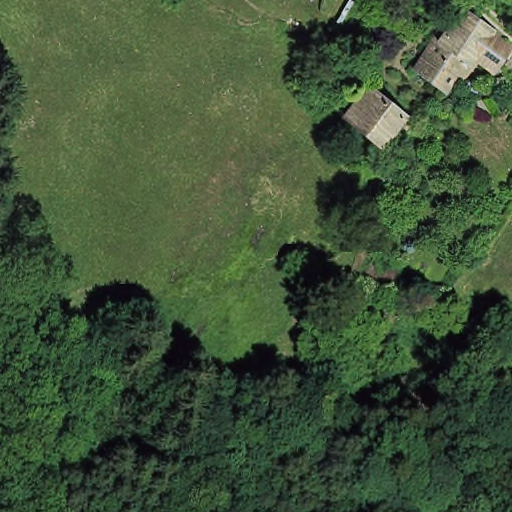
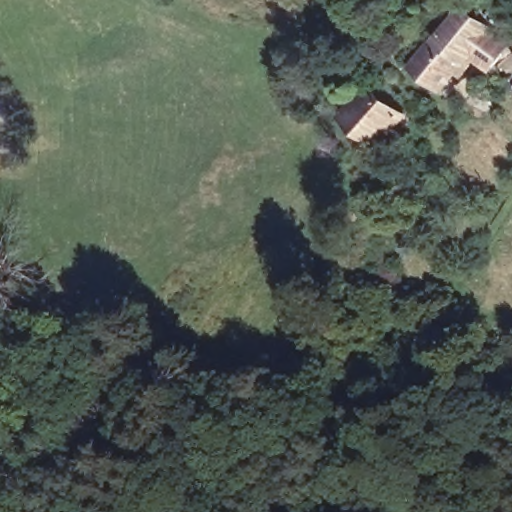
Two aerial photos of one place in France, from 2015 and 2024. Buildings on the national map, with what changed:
unchanged [(490,71),(475,61),(461,79),(454,73),(441,92),(410,70),(432,39),(437,42),(460,9),(490,30),(487,32),(508,46),(490,71)]
unchanged [(404,120),(378,151),(343,123),(369,91),(404,120)]

